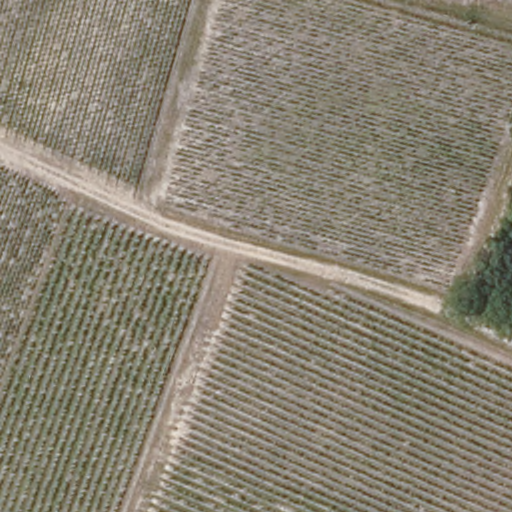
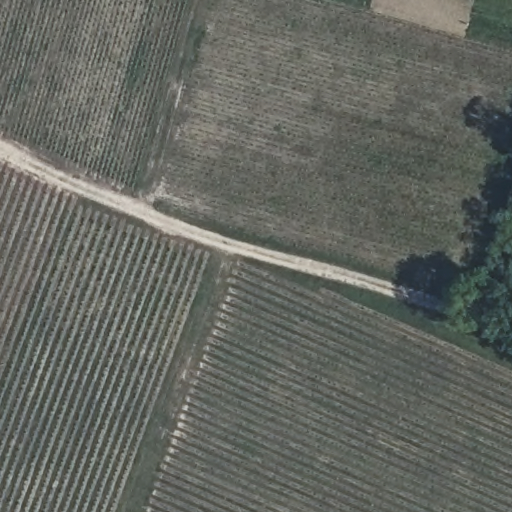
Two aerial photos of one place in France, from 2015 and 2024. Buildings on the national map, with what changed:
unchanged [(512,220),(512,229),(509,228),(512,220)]

